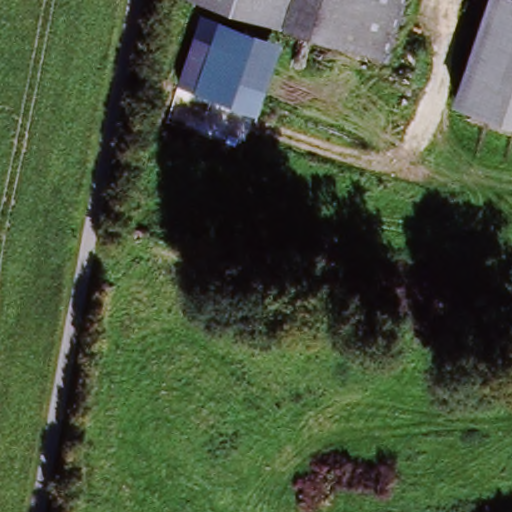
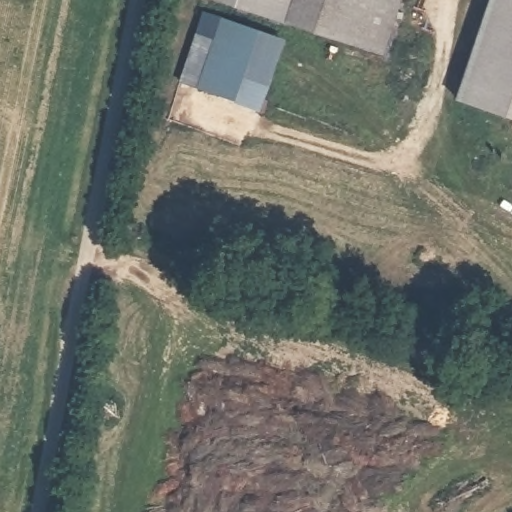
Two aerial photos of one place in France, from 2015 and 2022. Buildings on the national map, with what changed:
unchanged [(268,16),(236,5),(221,0),(295,0),(287,23),(268,16)]
unchanged [(295,0),(407,0),(387,59),(294,26),(287,23),(295,0)]
unchanged [(457,92),(488,0),(498,0),(512,5),(512,111),(457,92)]
unchanged [(180,86),(198,38),(212,42),(220,21),(284,43),(259,113),(180,86)]

